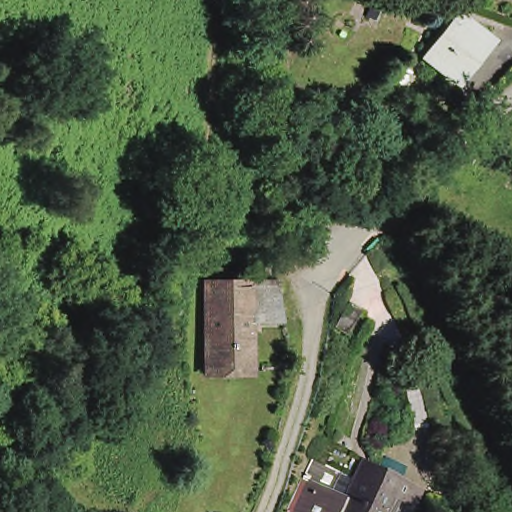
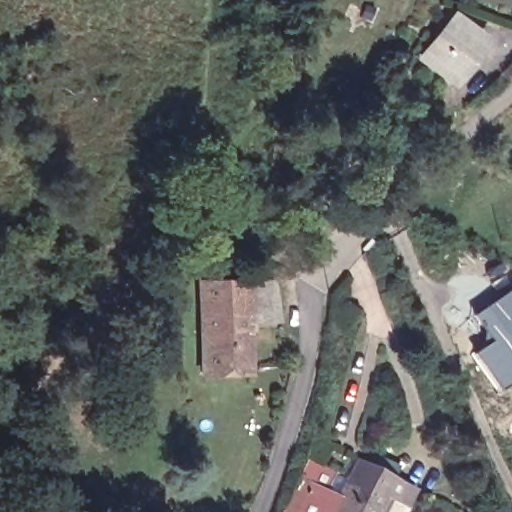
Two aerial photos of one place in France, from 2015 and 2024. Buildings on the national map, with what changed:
unchanged [(420,61),(451,22),(479,44),(449,83),(420,61)]
unchanged [(259,324),(257,321),(247,321),(248,374),(202,375),(202,285),(273,285),(276,323),(259,324)]
new [(472,314),(512,286),(512,357),(509,359),(512,364),(512,375),(496,386),(471,352),(490,340),(472,314)]
unchanged [(330,325),(341,300),(359,308),(348,333),(330,325)]
unchanged [(337,474),(346,454),(353,458),(360,461),(397,480),(412,488),(405,503),(390,495),(381,512),(292,512),(308,479),(315,463),(337,474)]

